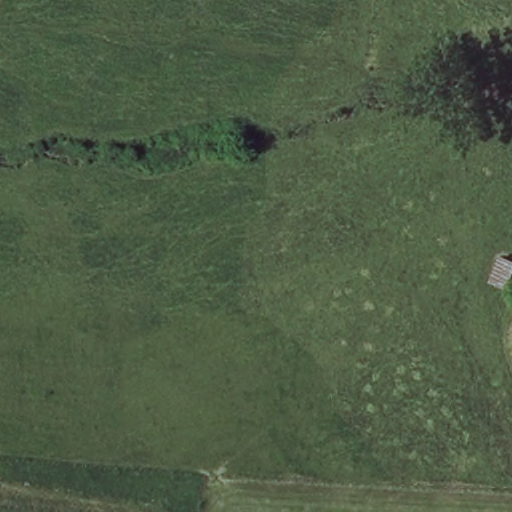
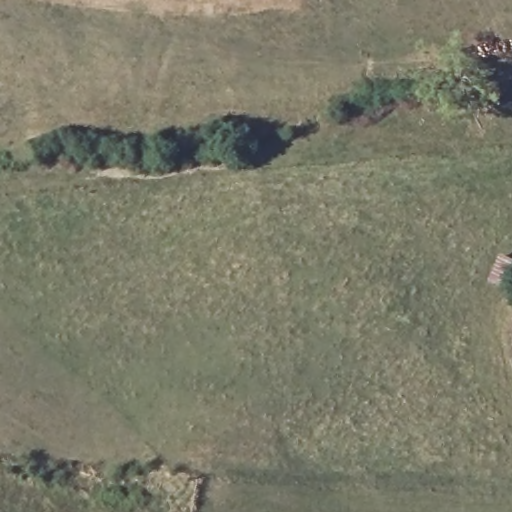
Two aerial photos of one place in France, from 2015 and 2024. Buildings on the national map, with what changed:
unchanged [(505,286),(488,280),(500,253),(512,258),(512,269),(505,286)]

